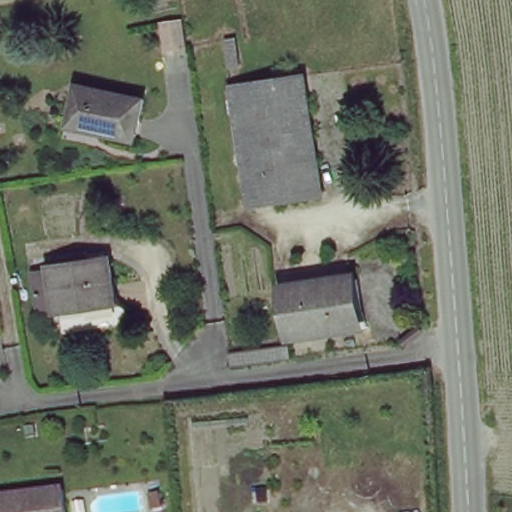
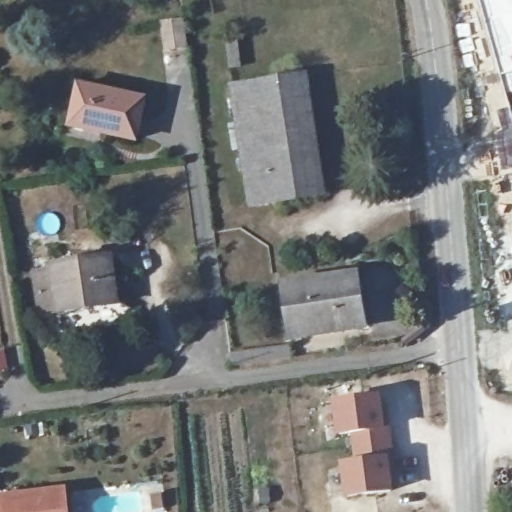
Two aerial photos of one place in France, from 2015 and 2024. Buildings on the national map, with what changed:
new [(500,78),(478,0),(512,0),(512,97),(507,98),(500,78)]
unchanged [(166,54),(162,26),(183,23),(187,51),(166,54)]
unchanged [(310,76),(327,194),(282,201),(264,84),(310,76)]
unchanged [(74,114),(81,80),(146,93),(138,137),(104,130),(72,123),(74,114)]
unchanged [(282,201),(260,204),(242,87),(264,84),(282,201)]
new [(512,120),(512,127),(511,120),(512,120)]
unchanged [(112,256),(120,299),(62,307),(56,265),(112,256)]
unchanged [(351,279),(358,325),(300,333),(292,287),(351,279)]
new [(354,461),(351,435),(337,436),(333,401),(382,394),(384,408),(389,408),(397,478),(392,478),(393,492),(345,499),(341,463),(354,461)]
unchanged [(68,486),(71,512),(2,512),(1,493),(68,486)]

